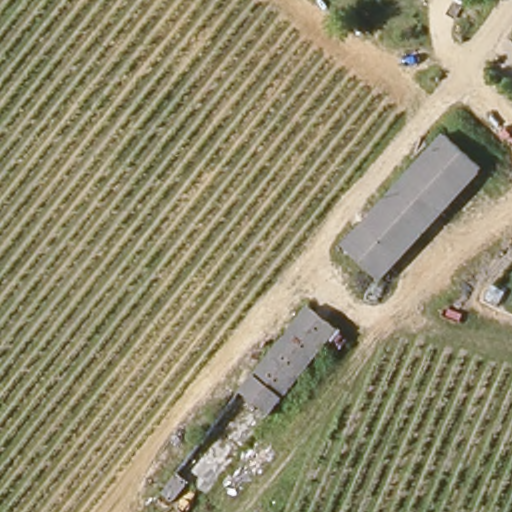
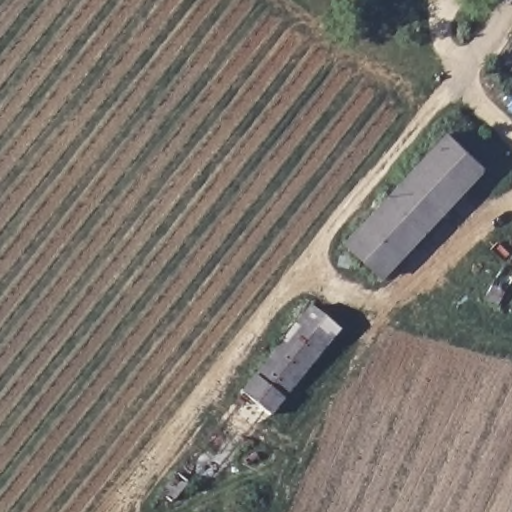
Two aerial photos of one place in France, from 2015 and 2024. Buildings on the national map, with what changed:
unchanged [(345,245),(448,133),(484,166),(381,277),(345,245)]
unchanged [(314,305),(343,328),(210,495),(194,482),(171,510),(159,499),(314,305)]

